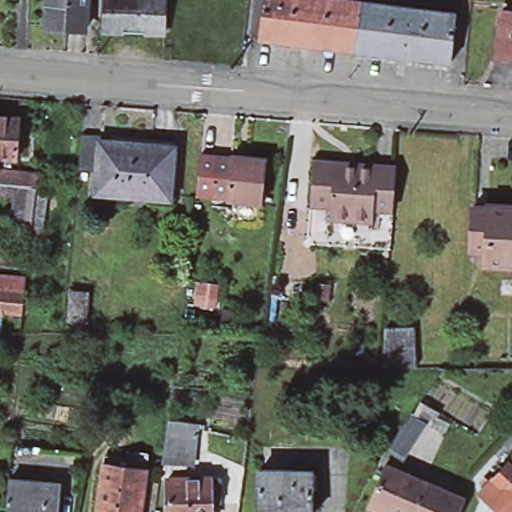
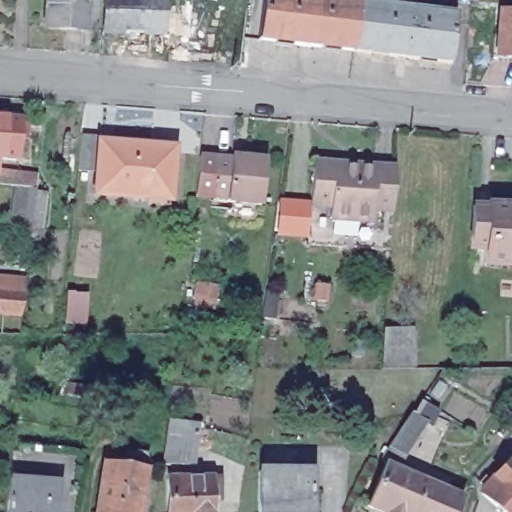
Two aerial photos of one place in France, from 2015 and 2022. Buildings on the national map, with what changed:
unchanged [(84,28),(43,25),(45,0),(86,0),(84,28)]
unchanged [(163,34),(103,30),(106,0),(165,0),(163,34)]
unchanged [(259,35),(265,0),(360,0),(363,1),(354,49),(259,35)]
unchanged [(457,15),(449,64),(354,49),(363,1),(457,15)]
unchanged [(512,15),(512,59),(498,57),(503,14),(512,15)]
unchanged [(14,160),(0,158),(0,118),(16,120),(14,160)]
unchanged [(98,197),(99,177),(82,175),(85,140),(105,142),(105,146),(150,151),(151,144),(176,147),(176,152),(173,197),(172,204),(151,202),(98,197)]
unchanged [(260,205),(236,202),(226,201),(226,199),(211,197),(195,196),(199,156),(214,157),(230,159),(230,157),(241,158),(265,161),(260,205)]
unchanged [(396,209),(377,208),(376,220),(334,218),(334,206),(314,204),(316,170),(316,163),(358,165),(398,167),(396,209)]
unchanged [(39,192),(52,194),(51,231),(20,230),(23,192),(0,189),(0,171),(37,176),(39,192)]
unchanged [(488,262),(481,262),(482,249),(466,247),(469,207),(484,207),(484,204),(492,205),(512,206),(512,263),(488,262)]
unchanged [(0,311),(0,278),(24,280),(23,294),(20,313),(0,311)]
unchanged [(328,286),(326,301),(314,300),(315,285),(328,286)]
unchanged [(415,329),(417,368),(382,368),(384,329),(415,329)]
unchanged [(424,430),(404,461),(388,453),(409,421),(424,430)]
unchanged [(162,462),(164,447),(166,433),(168,422),(196,426),(194,437),(192,451),(190,466),(162,462)]
unchanged [(103,460),(117,462),(118,453),(146,457),(144,473),(139,512),(95,512),(102,467),(103,460)]
unchanged [(501,512),(480,492),(484,487),(479,482),(484,477),(489,482),(512,457),(512,512),(501,512)]
unchanged [(388,467),(407,476),(428,486),(447,495),(464,502),(459,512),(375,512),(368,509),(388,467)]
unchanged [(308,512),(257,512),(258,472),(309,473),(308,512)]
unchanged [(208,478),(216,477),(216,500),(208,500),(209,512),(166,512),(164,479),(208,478)]
unchanged [(56,485),(55,512),(3,512),(3,510),(5,481),(56,485)]

